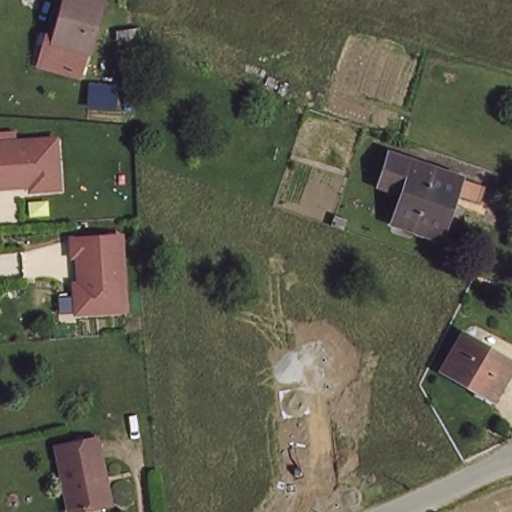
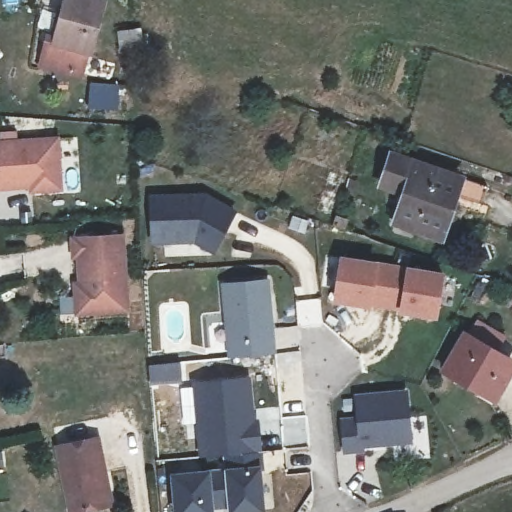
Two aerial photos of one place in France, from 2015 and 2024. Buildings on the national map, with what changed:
new [(35,67),(45,33),(51,34),(60,0),(65,0),(53,42),(90,52),(80,80),(35,67)]
unchanged [(90,52),(53,42),(65,0),(104,0),(90,52)]
unchanged [(117,30),(128,29),(139,27),(141,49),(130,50),(120,51),(117,30)]
unchanged [(35,192),(34,182),(0,185),(0,138),(63,135),(67,190),(35,192)]
unchanged [(457,195),(443,239),(438,237),(433,236),(393,222),(403,192),(380,185),(390,154),(458,176),(486,186),(480,203),(457,195)]
new [(192,244),(148,245),(145,195),(205,192),(236,210),(215,256),(192,244)]
unchanged [(336,215),(346,219),(342,229),(333,225),(336,215)]
unchanged [(131,310),(77,312),(74,278),(80,277),(80,257),(72,257),(71,234),(128,234),(131,310)]
new [(436,320),(332,301),(340,255),(444,272),(436,320)]
new [(220,282),(268,280),(274,354),(225,358),(220,282)]
unchanged [(481,342),(478,347),(512,367),(493,400),(443,370),(465,332),(481,342)]
new [(191,382),(248,378),(251,421),(258,421),(260,453),(221,457),(197,457),(191,382)]
unchanged [(357,418),(356,395),(405,391),(410,441),(361,445),(361,449),(345,450),(342,420),(357,418)]
unchanged [(66,491),(56,445),(97,437),(110,503),(76,510),(70,512),(66,491)]
new [(221,457),(260,453),(265,512),(171,512),(166,473),(222,469),(221,457)]

